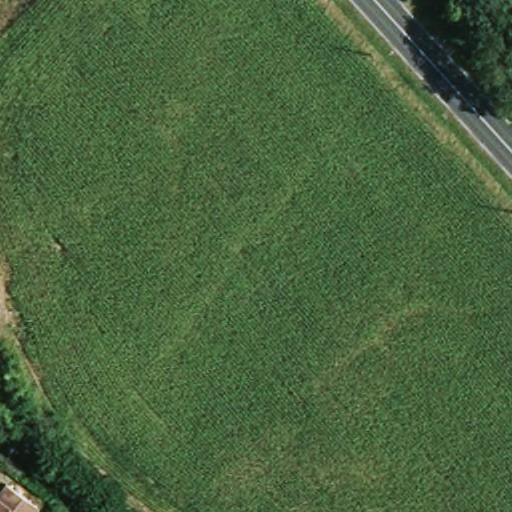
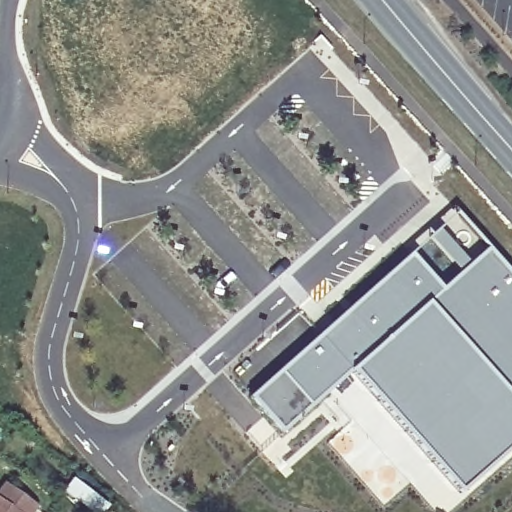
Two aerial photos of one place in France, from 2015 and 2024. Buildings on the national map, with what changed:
new [(319,337),(345,313),(376,348),(487,251),(512,278),(512,443),(460,490),(319,337)]
unchanged [(35,506),(30,512),(0,512),(0,495),(6,485),(35,506)]

